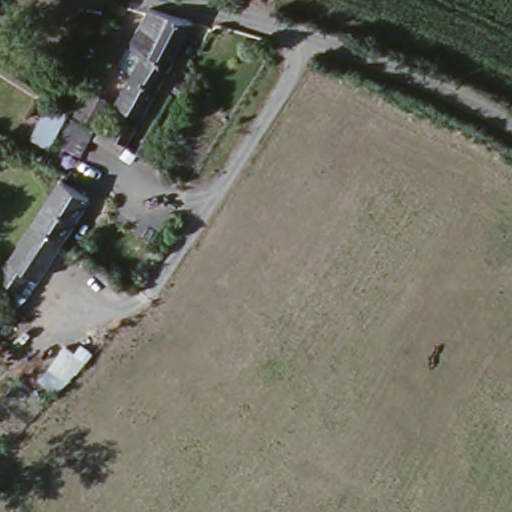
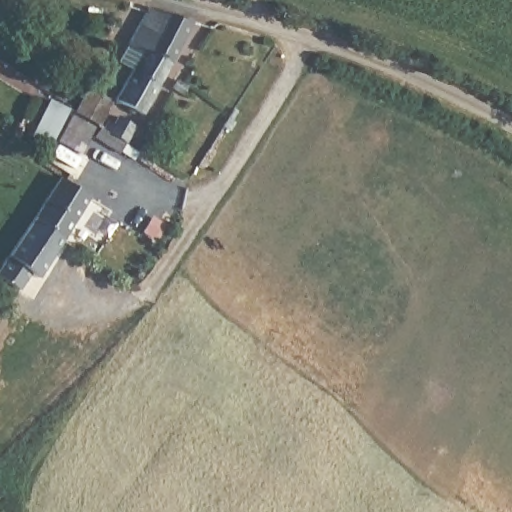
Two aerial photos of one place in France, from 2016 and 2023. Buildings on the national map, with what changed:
unchanged [(169,70),(145,57),(131,50),(152,12),(167,16),(195,23),(169,70)]
unchanged [(142,117),(120,105),(127,87),(115,80),(125,64),(137,69),(145,57),(169,70),(152,101),(142,117)]
unchanged [(80,155),(33,132),(52,98),(93,126),(80,155)]
unchanged [(122,125),(115,136),(99,125),(106,110),(125,121),(122,125)]
unchanged [(30,219),(56,175),(85,195),(60,237),(30,219)]
unchanged [(60,237),(39,275),(30,270),(17,286),(0,277),(0,266),(30,219),(60,237)]

